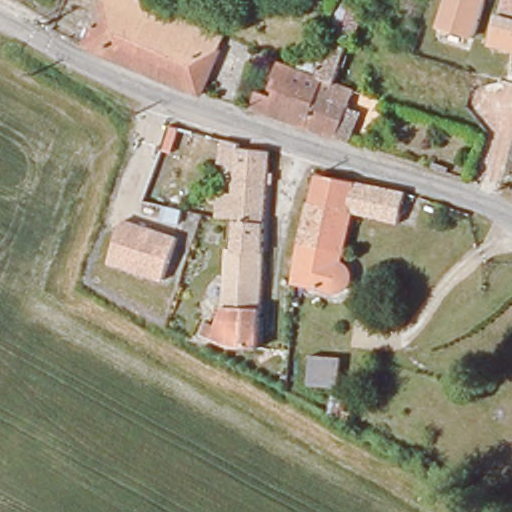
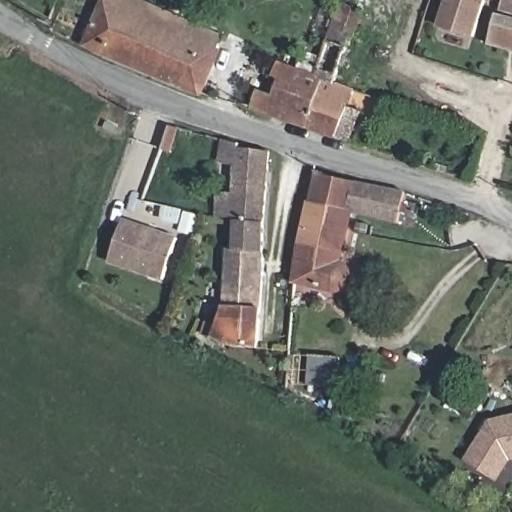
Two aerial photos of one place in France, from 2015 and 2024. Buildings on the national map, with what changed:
unchanged [(99,0),(125,0),(202,40),(209,44),(220,50),(201,91),(182,87),(82,33),(99,0)]
unchanged [(441,27),(449,0),(487,0),(475,37),(441,27)]
unchanged [(512,0),(512,53),(491,46),(504,0),(512,0)]
unchanged [(331,29),(340,3),(361,11),(352,38),(331,29)]
unchanged [(271,95),(276,80),(272,77),(277,64),(317,76),(322,60),(337,68),(334,84),(351,91),(344,110),(356,115),(347,142),(250,108),(254,92),(271,95)]
unchanged [(196,131),(189,159),(167,150),(174,124),(196,131)]
unchanged [(242,169),(225,164),(228,142),(272,155),(262,257),(243,254),(242,231),(242,169)]
unchanged [(306,207),(306,206),(312,172),(348,181),(341,214),(306,207)]
unchanged [(387,223),(341,214),(348,181),(395,193),(387,223)]
unchanged [(306,207),(341,214),(330,270),(337,273),(341,280),(340,290),(340,292),(333,296),(292,288),(292,279),(306,207)]
unchanged [(163,280),(111,262),(128,220),(178,237),(163,280)]
unchanged [(240,352),(226,346),(216,344),(216,338),(223,327),(234,300),(235,254),(243,254),(262,257),(256,352),(240,352)]
unchanged [(336,365),(333,387),(305,383),(307,374),(309,361),(336,365)]
unchanged [(346,403),(337,423),(314,410),(319,400),(329,404),(330,396),(346,403)]
new [(488,420),(512,415),(512,460),(497,481),(465,460),(488,420)]

